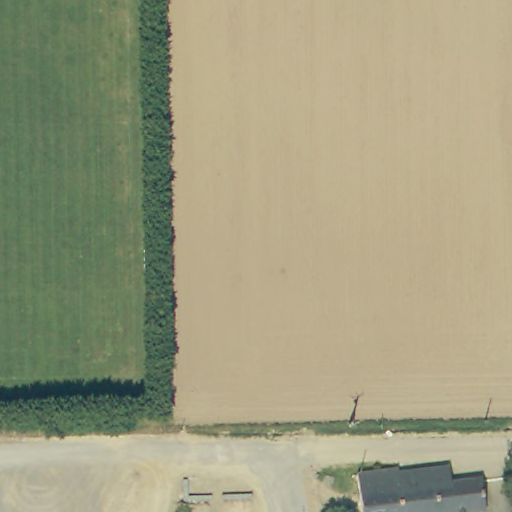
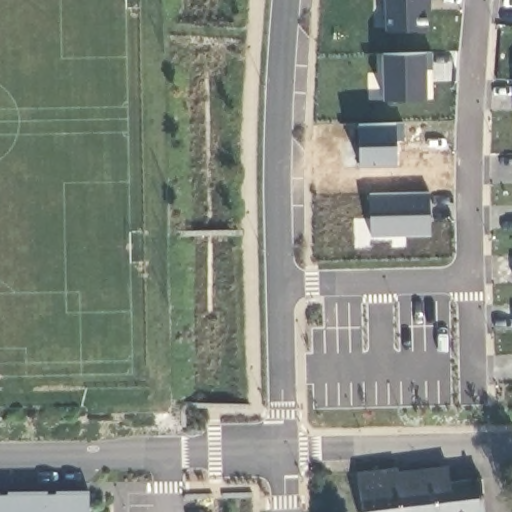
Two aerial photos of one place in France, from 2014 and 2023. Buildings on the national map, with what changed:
new [(384,31),(383,0),(426,0),(426,30),(384,31)]
new [(382,100),(381,52),(426,52),(427,97),(382,100)]
new [(429,234),(370,235),(370,194),(427,193),(429,234)]
unchanged [(449,469),(452,485),(482,482),(487,512),(402,512),(396,471),(449,469)]
unchanged [(402,512),(361,512),(356,472),(396,471),(402,512)]
new [(87,495),(88,512),(0,512),(0,496),(87,495)]

